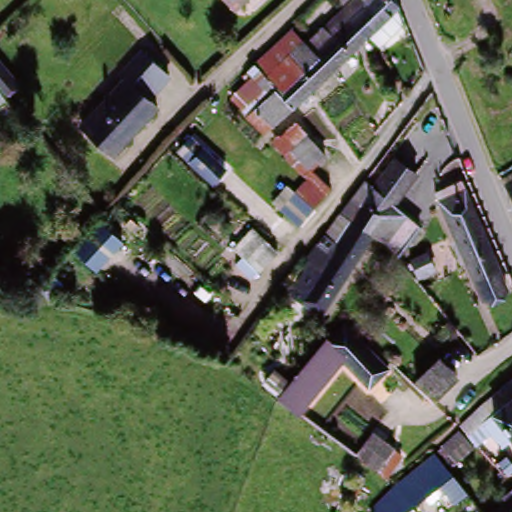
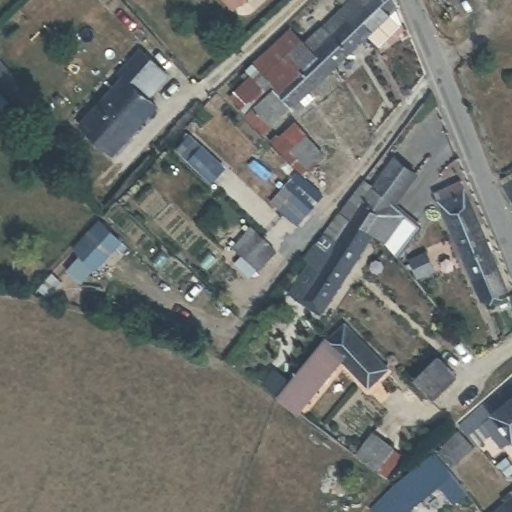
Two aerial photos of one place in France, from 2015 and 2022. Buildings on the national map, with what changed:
unchanged [(236,11),(226,0),(249,0),(236,11)]
unchanged [(317,32),(349,0),(400,0),(404,4),(403,5),(409,21),(386,43),(375,32),(340,65),(323,45),(326,42),(317,32)]
unchanged [(436,1),(436,0),(437,0),(436,1)]
unchanged [(273,92),(268,96),(252,80),(246,73),(293,28),(315,52),(321,47),(323,45),(340,65),(291,112),(273,92)]
unchanged [(128,78),(121,71),(142,49),(169,76),(148,97),(158,106),(112,154),(83,124),(128,78)]
unchanged [(267,135),(233,98),(242,89),(252,80),(268,96),(273,92),(291,112),(282,121),(267,135)]
unchanged [(315,170),(285,138),(294,131),(302,123),(331,156),(329,158),(315,170)]
unchanged [(226,169),(213,185),(176,152),(190,137),(226,169)]
unchanged [(492,300),(485,284),(450,210),(441,189),(462,180),(471,200),(504,275),(511,291),(492,300)]
unchanged [(386,243),(376,231),(316,312),(298,296),(359,212),(350,202),(366,185),(374,193),(387,206),(405,224),(386,243)]
unchanged [(508,190),(512,188),(512,196),(508,190)]
unchanged [(122,242),(95,271),(73,249),(100,220),(122,242)]
unchanged [(347,322),(394,366),(380,380),(352,353),(351,351),(334,335),(347,322)]
unchanged [(280,389),(306,363),(334,335),(351,351),(352,353),(298,407),(280,389)]
unchanged [(435,359),(452,377),(432,397),(413,380),(435,359)]
unchanged [(470,428),(512,389),(512,435),(497,421),(478,438),(470,428)]
unchanged [(363,453),(381,437),(399,456),(385,470),(378,477),(359,457),(363,453)]
unchanged [(474,466),(463,454),(479,439),(488,453),(474,466)]
unchanged [(374,503),(392,486),(421,459),(433,448),(462,496),(448,509),(428,488),(409,505),(402,512),(375,512),(370,507),(374,503)]
unchanged [(501,512),(512,503),(512,512),(501,512)]

